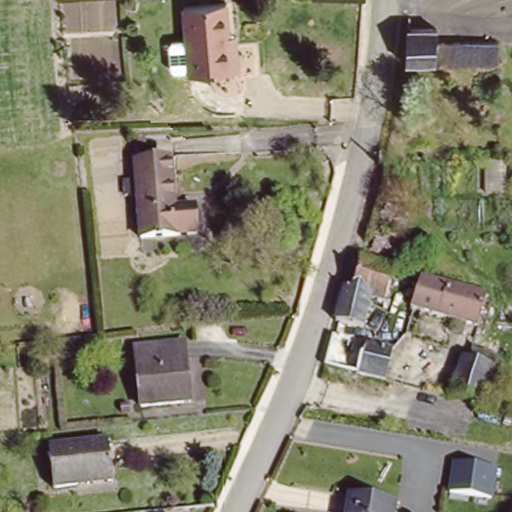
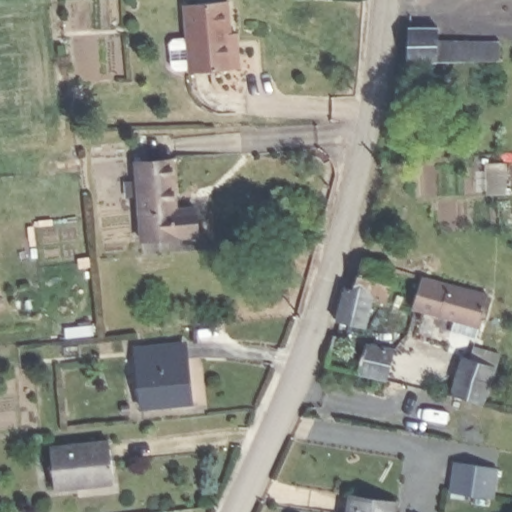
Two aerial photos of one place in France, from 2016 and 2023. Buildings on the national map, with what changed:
unchanged [(235,64),(228,65),(186,68),(180,7),(224,4),(226,28),(232,28),(235,64)]
unchanged [(430,31),(430,42),(493,43),(493,65),(401,66),(401,30),(430,31)]
unchanged [(172,160),(173,209),(192,209),(193,238),(137,240),(135,162),(172,160)]
unchanged [(348,273),(355,275),(360,255),(423,274),(414,304),(413,304),(412,307),(371,295),(362,321),(336,313),(348,273)]
unchanged [(423,274),(486,295),(476,323),(414,304),(423,274)]
unchanged [(327,335),(356,342),(360,345),(386,352),(380,374),(378,380),(320,359),(327,335)]
unchanged [(183,341),(188,401),(135,405),(130,345),(183,341)]
unchanged [(447,389),(456,359),(490,368),(482,397),(480,406),(445,396),(447,389)]
unchanged [(105,441),(108,485),(48,491),(45,448),(105,441)]
unchanged [(454,460),(495,466),(491,496),(450,490),(454,460)]
unchanged [(392,502),(391,512),(343,512),(345,495),(392,502)]

